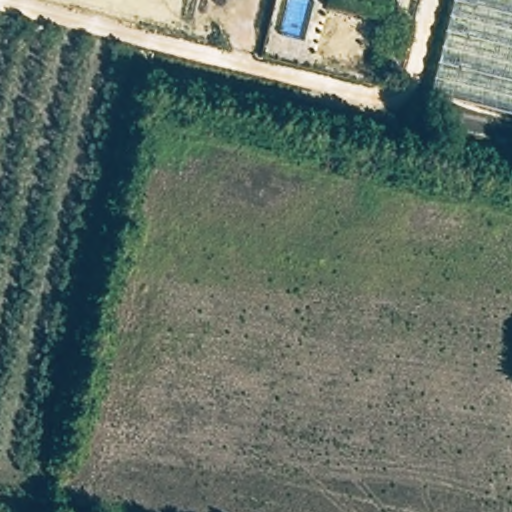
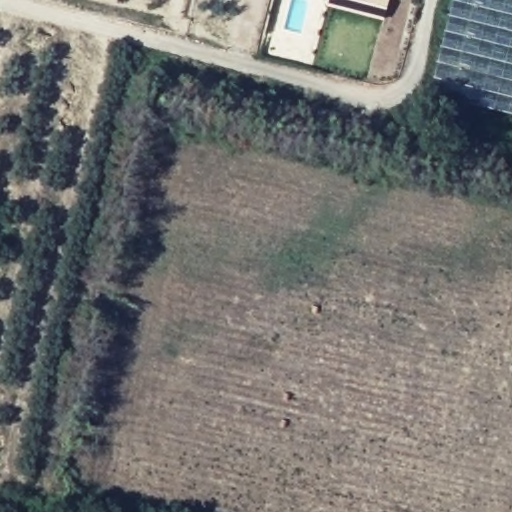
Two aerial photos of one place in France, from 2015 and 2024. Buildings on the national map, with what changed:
unchanged [(440,41),(451,0),(512,0),(512,110),(427,86),(440,41)]

